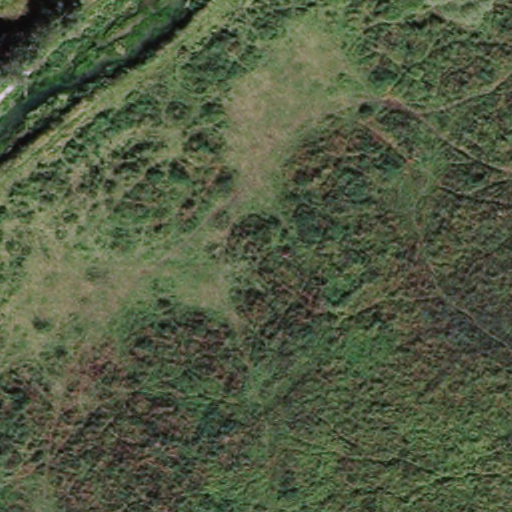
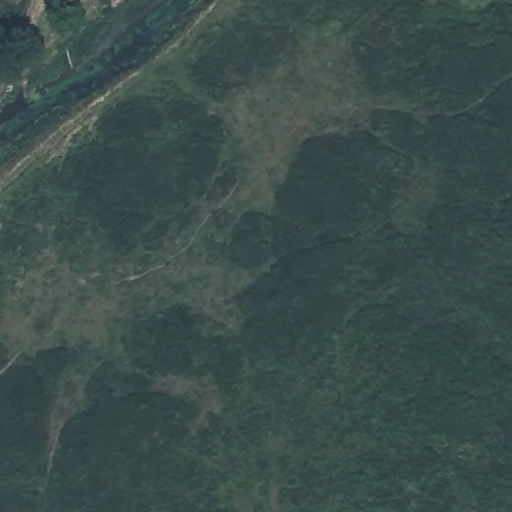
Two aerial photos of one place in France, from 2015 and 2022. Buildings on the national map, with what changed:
[]

